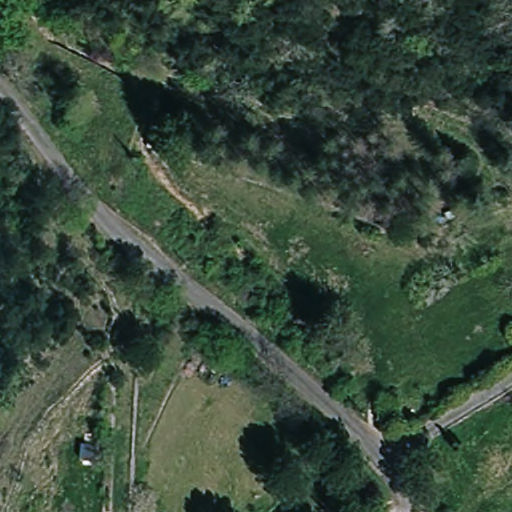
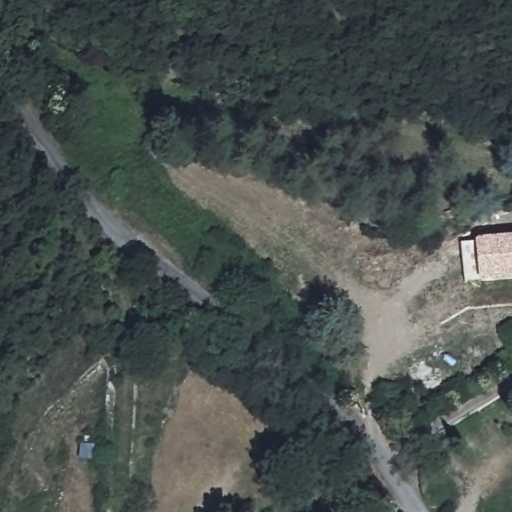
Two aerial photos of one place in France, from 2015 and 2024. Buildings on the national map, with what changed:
new [(480,283),(466,283),(461,244),(475,242),(475,240),(512,236),(512,281),(480,283)]

